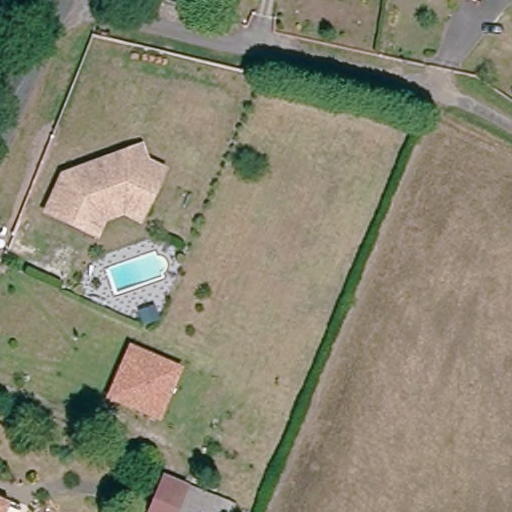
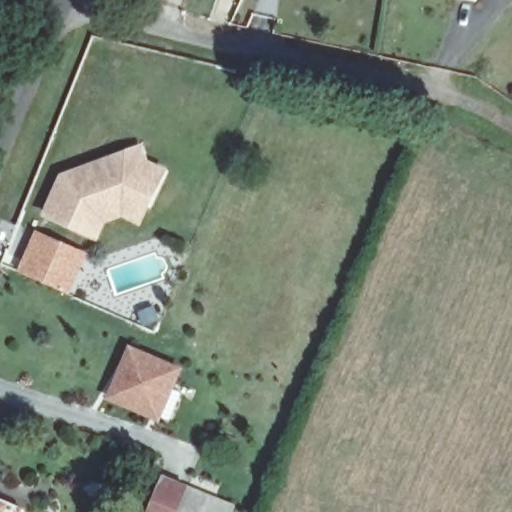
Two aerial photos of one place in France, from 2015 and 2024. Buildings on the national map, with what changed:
unchanged [(139,162),(157,170),(144,202),(125,194),(83,211),(75,231),(42,216),(46,205),(57,179),(81,169),(133,148),(139,162)]
unchanged [(137,218),(119,210),(100,218),(92,237),(75,231),(83,211),(125,194),(144,202),(137,218)]
new [(69,292),(17,271),(36,230),(86,253),(69,292)]
unchanged [(104,399),(128,345),(183,369),(160,422),(104,399)]
unchanged [(155,482),(180,491),(227,508),(226,512),(185,512),(173,508),(172,512),(144,512),(155,482)]
unchanged [(12,512),(0,512),(0,507),(12,512)]

